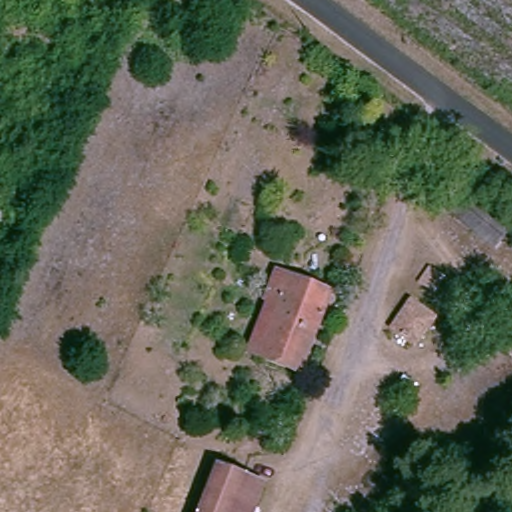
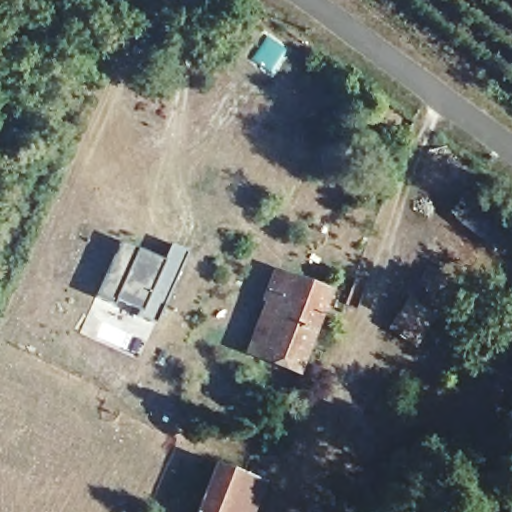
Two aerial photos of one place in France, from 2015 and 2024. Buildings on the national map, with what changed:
unchanged [(451,212),(466,195),(506,227),(492,245),(451,212)]
new [(141,308),(115,297),(114,303),(97,295),(122,241),(164,260),(171,245),(188,250),(156,322),(138,314),(141,308)]
unchanged [(335,299),(308,367),(263,350),(284,300),(274,295),(286,265),(323,279),(318,292),(335,299)]
unchanged [(432,294),(416,282),(428,266),(445,276),(432,294)]
unchanged [(415,344),(390,327),(409,300),(434,316),(415,344)]
unchanged [(510,353),(497,342),(509,326),(512,329),(512,351),(510,353)]
unchanged [(205,512),(225,459),(255,471),(239,512),(205,512)]

